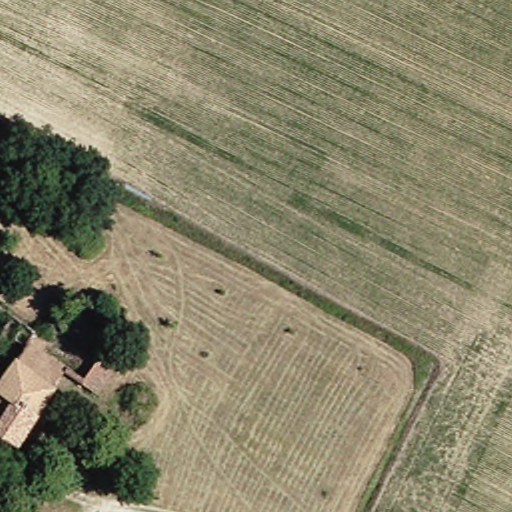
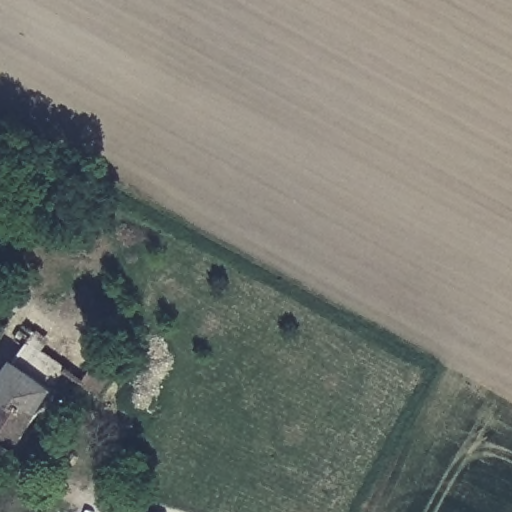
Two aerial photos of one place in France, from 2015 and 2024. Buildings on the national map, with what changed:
unchanged [(40,352),(71,376),(58,395),(20,453),(0,440),(0,437),(3,433),(0,431),(0,373),(16,349),(22,353),(36,331),(49,339),(40,352)]
unchanged [(104,402),(80,382),(100,356),(123,374),(104,402)]

